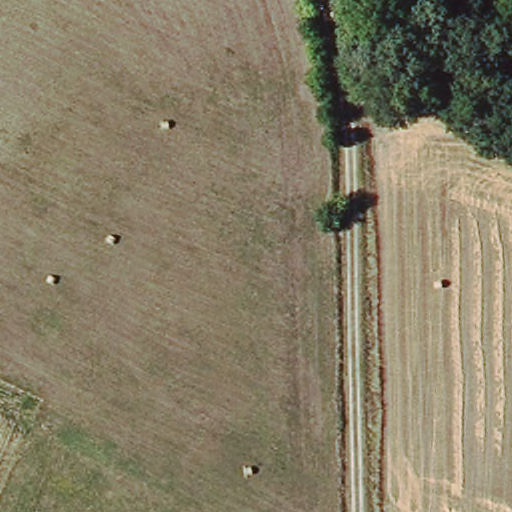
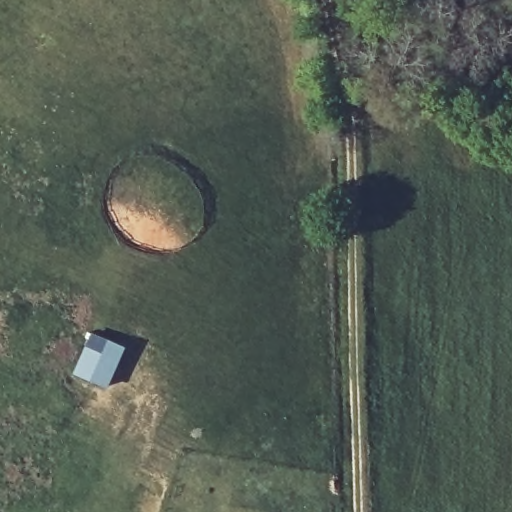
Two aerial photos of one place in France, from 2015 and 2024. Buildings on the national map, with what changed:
new [(103,354),(110,341),(125,348),(108,387),(75,373),(86,348),(103,354)]

